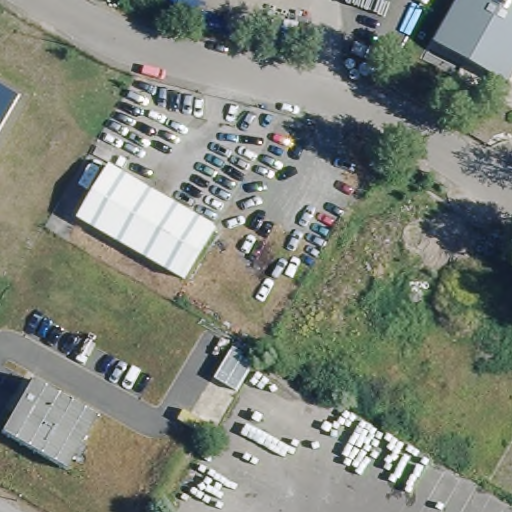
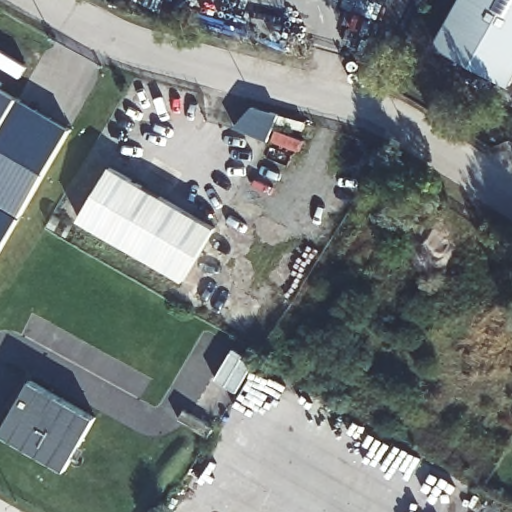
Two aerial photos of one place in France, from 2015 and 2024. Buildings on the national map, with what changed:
unchanged [(460,0),(512,0),(512,80),(509,86),(437,42),(460,0)]
unchanged [(17,99),(0,127),(0,88),(17,99)]
new [(71,127),(0,252),(0,127),(17,99),(71,127)]
unchanged [(184,282),(81,220),(113,167),(216,230),(184,282)]
unchanged [(2,432),(31,379),(97,417),(67,471),(2,432)]

